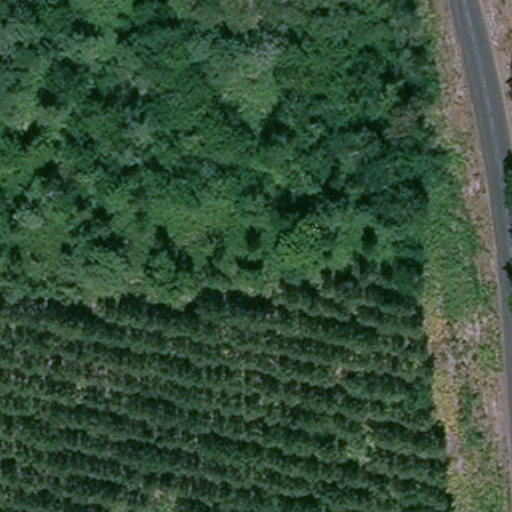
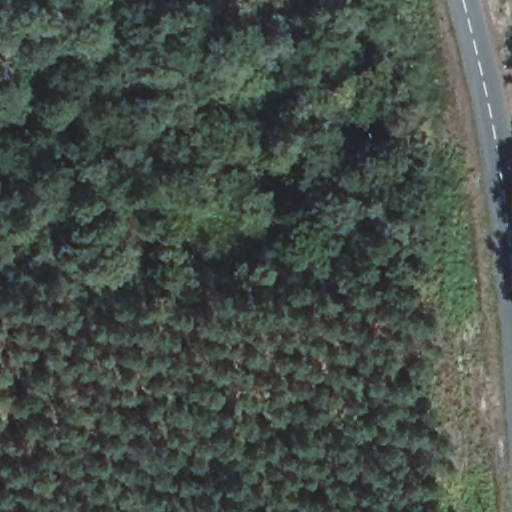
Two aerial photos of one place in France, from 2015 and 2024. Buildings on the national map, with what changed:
[]

